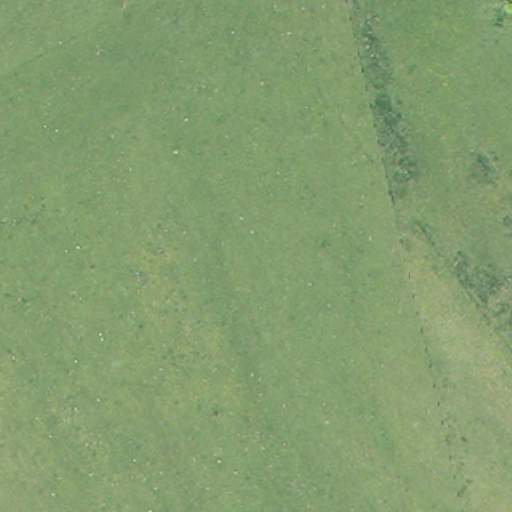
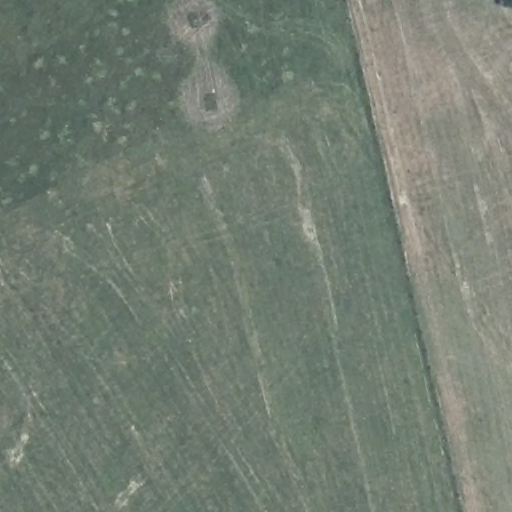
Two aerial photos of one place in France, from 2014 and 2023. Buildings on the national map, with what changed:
[]

